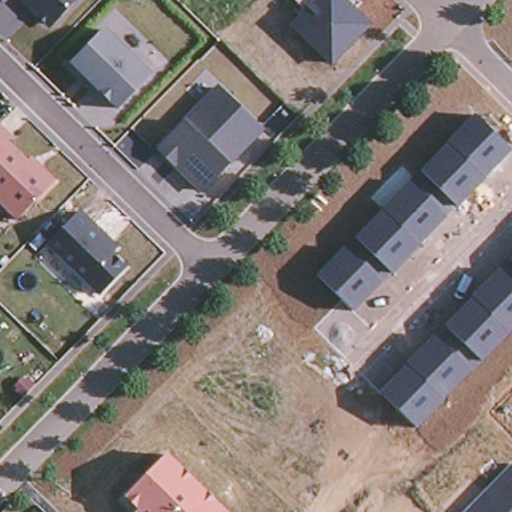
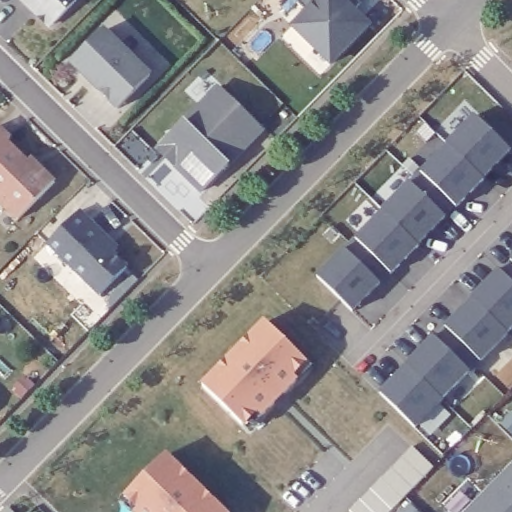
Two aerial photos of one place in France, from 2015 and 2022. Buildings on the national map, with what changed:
unchanged [(2,0),(7,0),(5,2),(2,0)]
unchanged [(78,0),(54,24),(47,24),(39,16),(27,4),(22,0),(78,0)]
unchanged [(293,0),(360,0),(362,1),(352,8),(372,27),(336,67),(293,31),(307,15),(293,0)]
unchanged [(104,30),(151,75),(119,107),(94,84),(95,81),(86,73),(85,75),(72,62),(104,30)]
unchanged [(185,126),(191,131),(207,115),(202,110),(219,92),(262,134),(202,195),(175,168),(177,166),(161,150),(185,126)]
unchanged [(354,311),(319,275),(475,115),(512,151),(354,311)]
unchanged [(0,201),(0,127),(10,138),(6,142),(26,161),(30,157),(40,166),(55,181),(18,219),(0,201)]
unchanged [(101,298),(47,246),(79,214),(106,240),(117,251),(113,256),(127,271),(101,298)]
unchanged [(417,427),(381,392),(512,257),(512,330),(417,427)]
new [(259,416),(256,412),(242,426),(200,386),(264,321),(305,362),(291,375),(295,379),(282,392),(272,402),(259,416)]
new [(402,445),(424,465),(379,512),(343,512),(340,509),(402,445)]
unchanged [(138,508),(125,496),(167,453),(227,512),(135,512),(138,508)]
unchanged [(512,464),(512,512),(464,512),(512,464)]
unchanged [(0,507),(5,512),(0,512),(0,507)]

